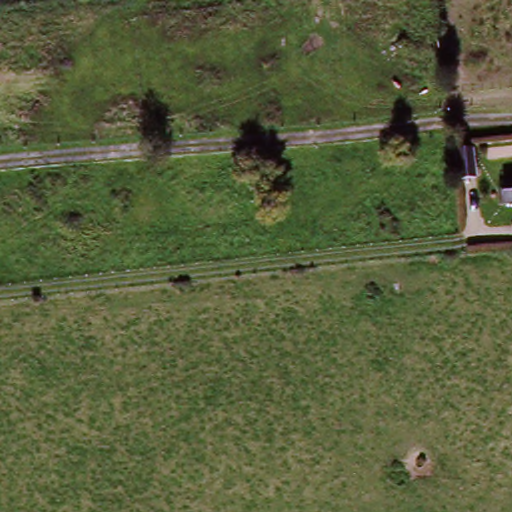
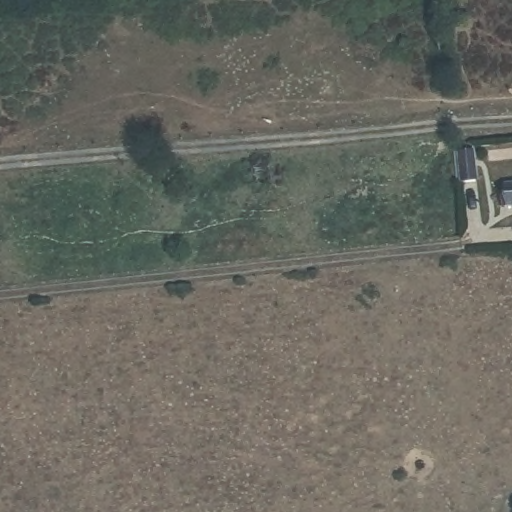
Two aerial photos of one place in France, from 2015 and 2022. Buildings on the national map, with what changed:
unchanged [(463,149),(480,147),(483,172),(467,174),(463,149)]
unchanged [(512,186),(512,214),(502,215),(497,187),(512,186)]

